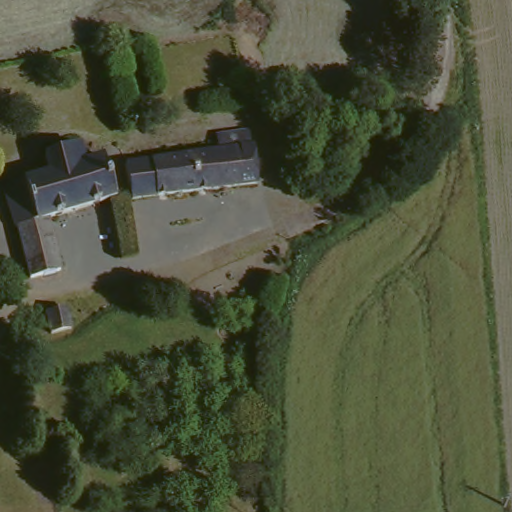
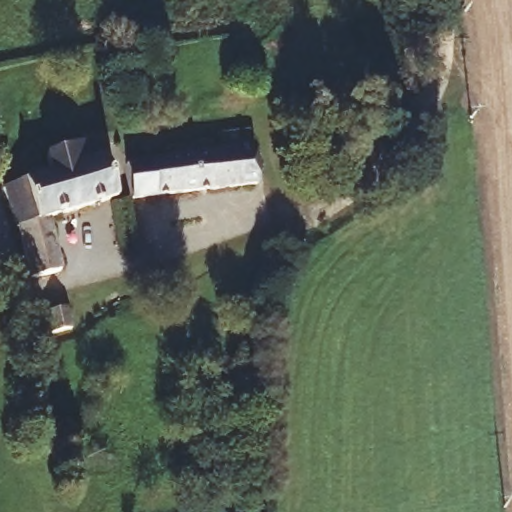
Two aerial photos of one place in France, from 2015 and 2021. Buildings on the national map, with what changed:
unchanged [(119,161),(124,199),(49,223),(56,274),(29,281),(9,185),(53,172),(54,172),(50,153),(87,143),(91,159),(119,152),(119,161)]
unchanged [(250,144),(254,182),(132,194),(127,158),(250,144)]
unchanged [(44,310),(64,305),(69,329),(48,334),(44,310)]

